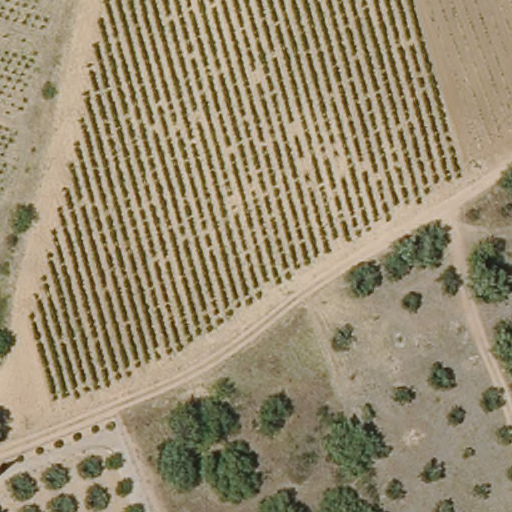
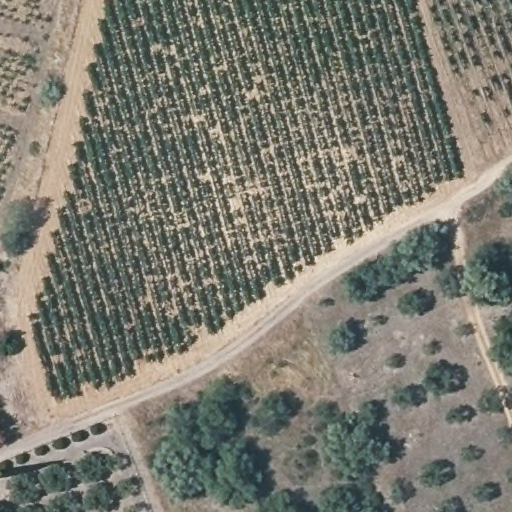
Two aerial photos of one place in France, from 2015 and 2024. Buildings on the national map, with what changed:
[]

